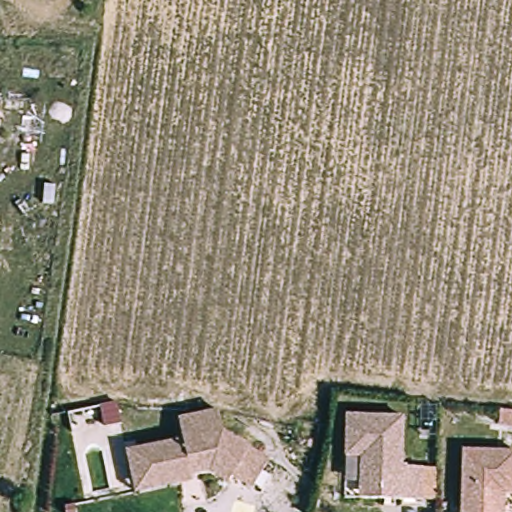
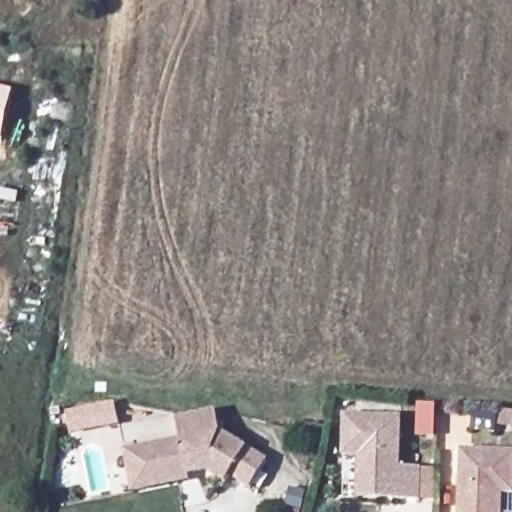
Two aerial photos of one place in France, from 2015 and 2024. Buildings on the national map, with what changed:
new [(15,90),(3,144),(0,143),(0,87),(15,90)]
new [(121,425),(71,435),(66,412),(116,401),(121,425)]
unchanged [(512,402),(512,417),(505,416),(506,401),(512,402)]
unchanged [(187,437),(182,416),(221,407),(226,427),(272,456),(255,483),(235,471),(231,478),(212,466),(194,470),(195,476),(142,490),(133,450),(187,437)]
unchanged [(363,486),(364,457),(348,456),(349,416),(405,418),(403,467),(424,468),(424,500),(401,500),(362,499),(363,486)]
unchanged [(467,446),(512,447),(512,488),(508,488),(508,512),(466,512),(467,446)]

